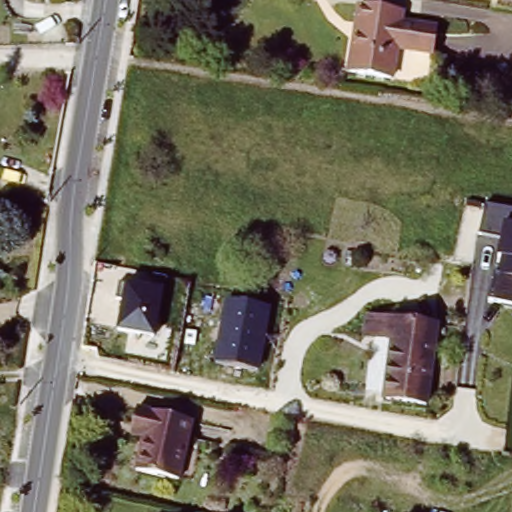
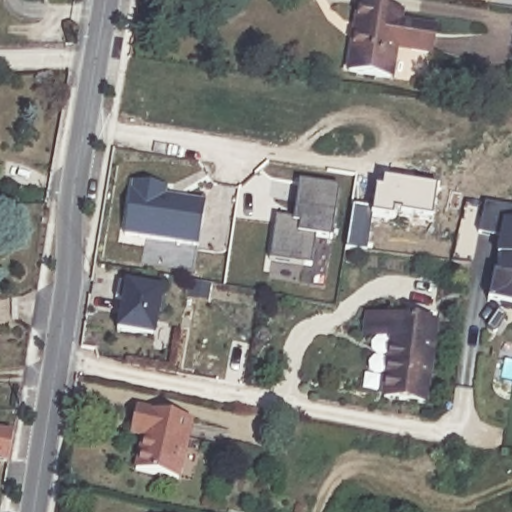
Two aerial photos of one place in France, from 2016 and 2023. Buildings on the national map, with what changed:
unchanged [(385,82),(341,75),(351,7),(395,14),(392,25),(428,31),(424,56),(390,50),(385,82)]
new [(352,205),(373,208),(376,190),(382,191),(383,180),(436,189),(432,220),(395,214),(393,220),(372,217),(366,252),(345,250),(352,205)]
new [(315,234),(312,266),(270,261),(276,218),(295,220),(300,181),(339,186),(332,238),(315,234)]
new [(198,248),(124,235),(131,183),(168,188),(167,196),(206,202),(198,248)]
unchanged [(491,257),(495,241),(476,238),(485,203),(512,208),(512,309),(489,304),(498,259),(491,257)]
unchanged [(113,332),(122,283),(161,291),(154,339),(113,332)]
new [(227,300),(269,308),(257,370),(215,363),(227,300)]
unchanged [(417,406),(375,399),(386,341),(369,338),(358,336),(362,315),(372,317),(431,328),(417,406)]
unchanged [(180,484),(139,475),(147,435),(142,434),(146,416),(192,425),(180,484)]
new [(8,436),(4,464),(0,463),(0,435),(8,436)]

